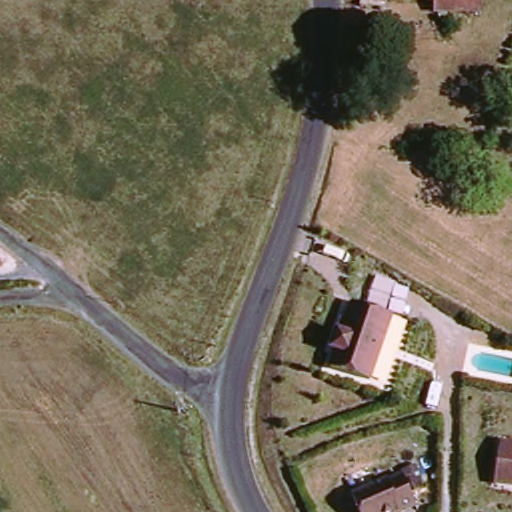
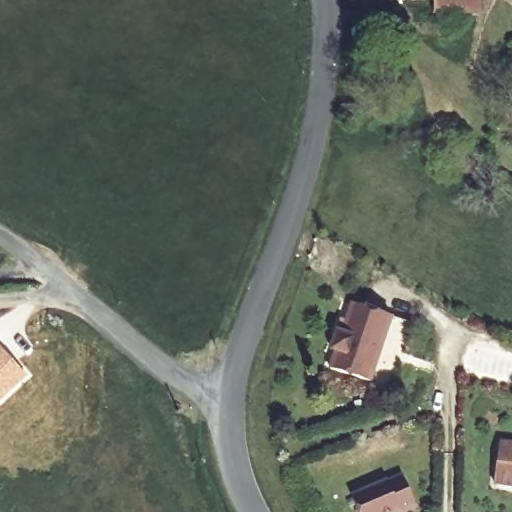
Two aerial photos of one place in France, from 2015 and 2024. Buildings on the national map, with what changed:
unchanged [(423,0),(431,0),(430,1),(423,0)]
unchanged [(474,0),(473,14),(430,12),(430,1),(431,0),(474,0)]
unchanged [(352,302),(392,316),(369,384),(328,370),(334,352),(330,350),(336,333),(341,334),(352,302)]
new [(0,401),(0,345),(28,375),(0,401)]
unchanged [(497,487),(502,445),(512,446),(512,488),(497,487)]
unchanged [(412,512),(353,512),(348,498),(401,480),(412,512)]

